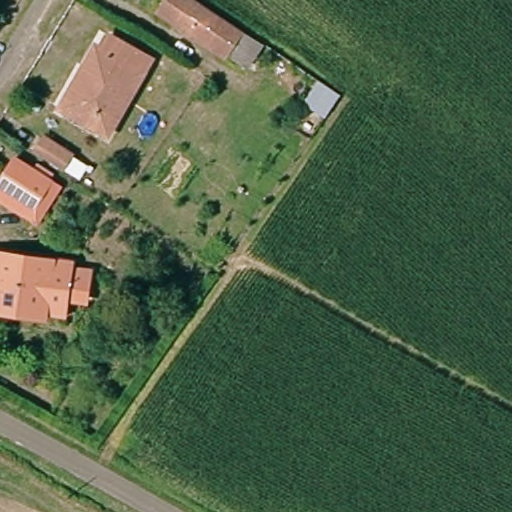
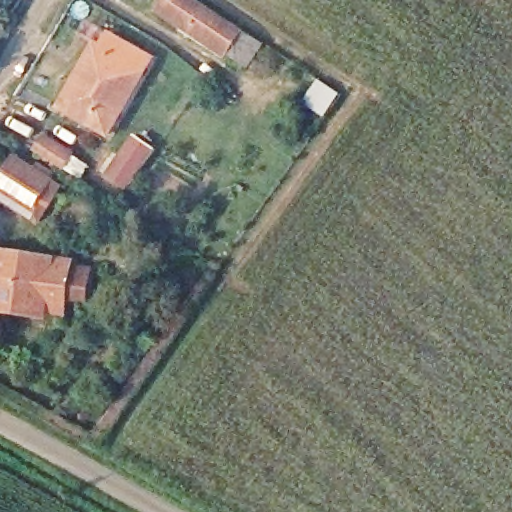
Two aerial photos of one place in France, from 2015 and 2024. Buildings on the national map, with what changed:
unchanged [(224,55),(155,12),(161,0),(194,0),(241,31),(256,42),(240,66),(224,55)]
unchanged [(62,105),(91,47),(100,50),(107,36),(146,57),(111,130),(62,105)]
unchanged [(316,111),(297,99),(310,80),(328,92),(316,111)]
unchanged [(17,144),(26,129),(51,146),(42,160),(17,144)]
new [(135,135),(157,151),(128,192),(106,176),(135,135)]
unchanged [(0,187),(0,184),(12,165),(47,189),(35,210),(0,187)]
unchanged [(0,313),(0,252),(64,259),(61,290),(59,310),(42,308),(40,317),(0,313)]

